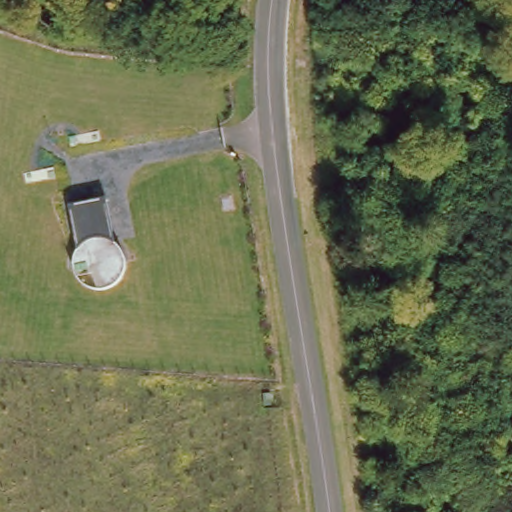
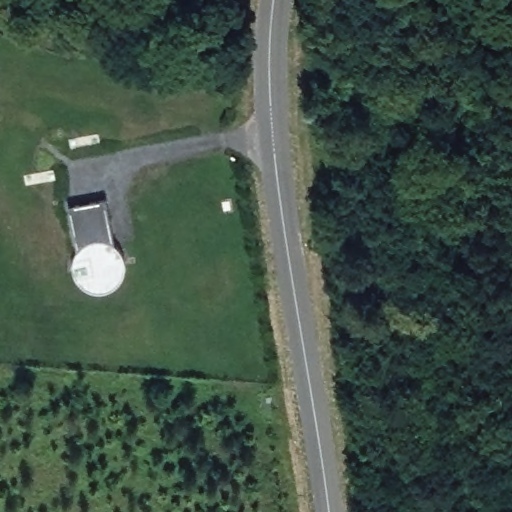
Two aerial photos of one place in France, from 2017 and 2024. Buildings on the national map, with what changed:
unchanged [(272,404),(265,405),(263,393),(271,392),(272,404)]

